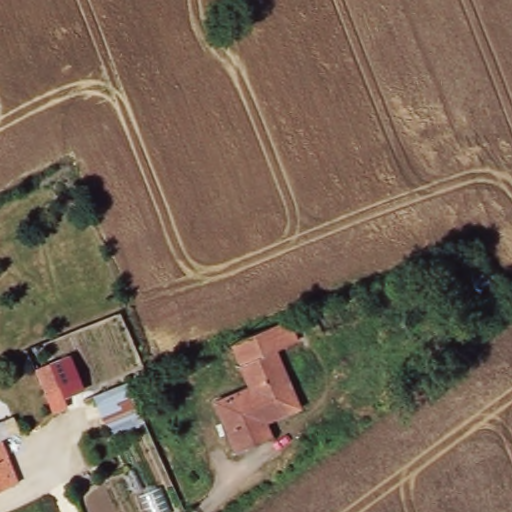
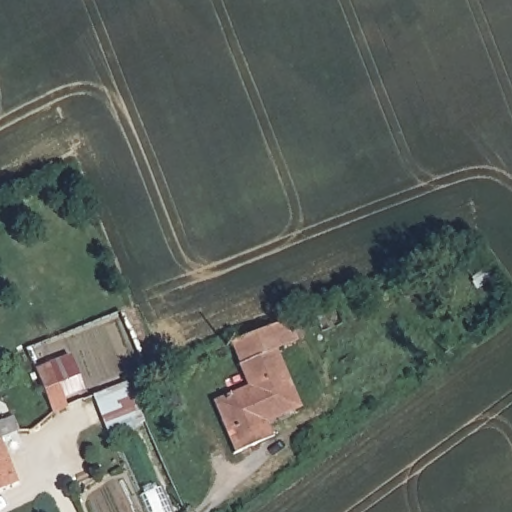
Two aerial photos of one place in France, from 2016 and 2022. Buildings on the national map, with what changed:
unchanged [(293,318),(300,341),(281,349),(282,352),(246,367),(240,369),(229,341),(293,318)]
unchanged [(261,445),(240,452),(217,399),(254,385),(246,367),(282,352),(304,406),(270,420),(277,437),(261,445)]
unchanged [(57,411),(47,390),(39,369),(55,364),(64,383),(72,404),(57,411)]
unchanged [(141,412),(105,428),(90,394),(130,380),(141,412)]
unchanged [(1,421),(6,431),(10,439),(4,441),(0,443),(0,422),(1,421)]
unchanged [(4,441),(12,460),(22,487),(0,497),(0,443),(4,441)]

